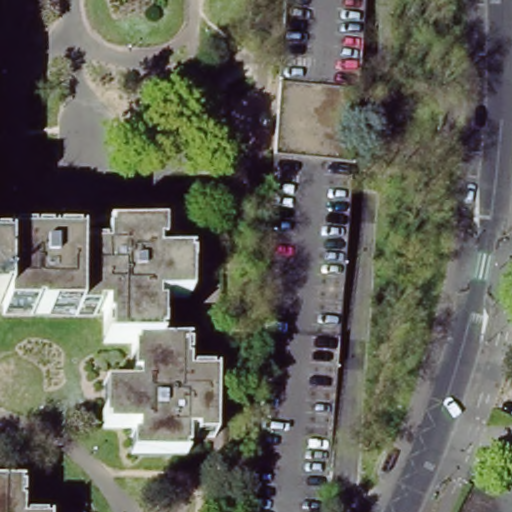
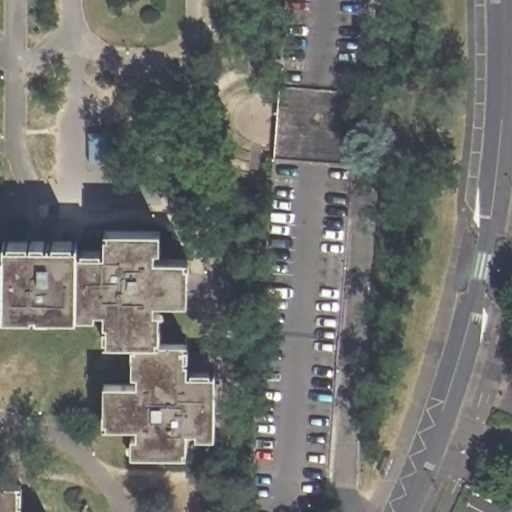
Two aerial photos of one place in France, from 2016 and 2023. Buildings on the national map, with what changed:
unchanged [(77,243),(77,252),(105,253),(107,233),(160,234),(160,260),(188,261),(187,304),(161,303),(160,344),(188,345),(187,376),(215,377),(215,441),(188,441),(187,459),(132,458),(132,429),(103,429),(104,386),(132,386),(133,344),(104,344),(105,318),(3,316),(3,309),(0,308),(0,252),(5,252),(5,242),(77,243)]
unchanged [(21,512),(0,512),(0,483),(22,484),(21,512)]

